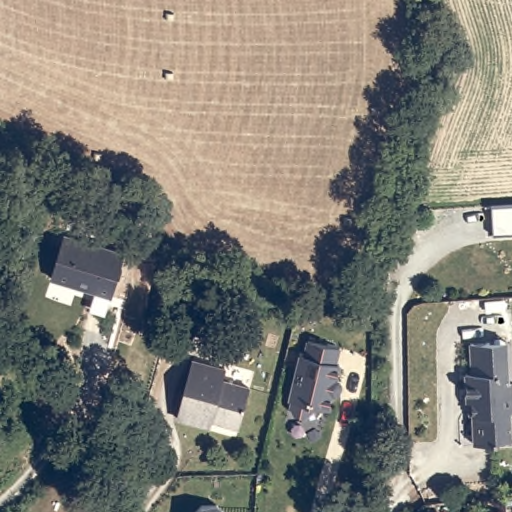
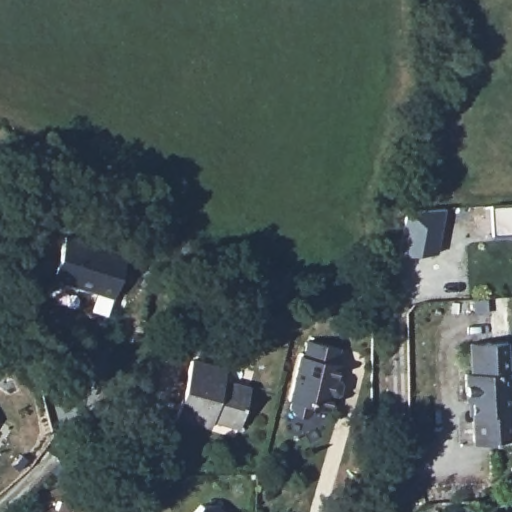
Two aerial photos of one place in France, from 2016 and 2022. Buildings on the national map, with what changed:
unchanged [(491,208),(512,206),(512,234),(493,235),(491,208)]
new [(400,254),(407,209),(444,208),(437,252),(400,254)]
unchanged [(64,233),(126,254),(113,297),(50,278),(64,233)]
unchanged [(217,288),(211,318),(184,311),(189,282),(217,288)]
unchanged [(303,339),(342,348),(334,380),(340,382),(342,386),(339,399),(330,399),(325,412),(314,410),(299,421),(286,402),(303,339)]
unchanged [(512,392),(512,408),(509,409),(507,438),(498,439),(497,442),(475,443),(472,402),(466,403),(466,375),(475,375),(475,373),(473,342),(488,342),(503,342),(505,392),(512,392)]
unchanged [(227,366),(225,374),(251,379),(242,419),(216,414),(215,421),(180,413),(192,358),(227,366)]
unchanged [(217,506),(224,512),(202,512),(205,508),(217,506)]

